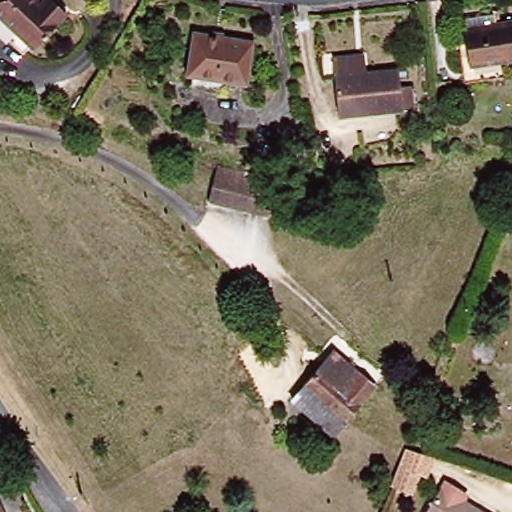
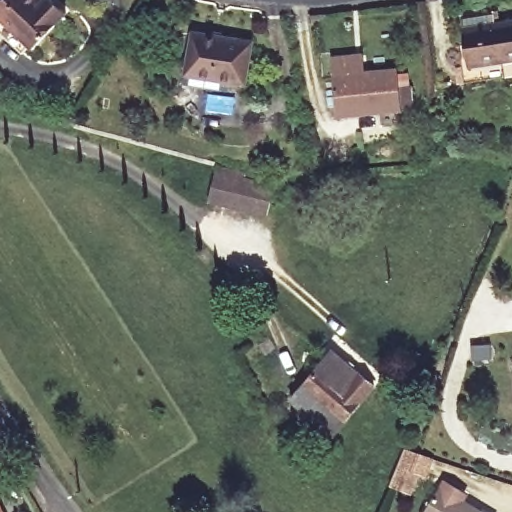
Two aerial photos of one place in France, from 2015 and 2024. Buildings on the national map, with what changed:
unchanged [(72,10),(38,45),(31,52),(0,21),(0,0),(62,0),(72,10)]
unchanged [(470,29),(467,13),(498,10),(500,19),(512,17),(512,55),(505,56),(508,72),(469,77),(467,62),(473,61),(470,29)]
unchanged [(191,85),(193,76),(187,75),(195,32),(252,41),(245,84),(223,81),(222,90),(191,85)]
unchanged [(415,106),(406,107),(406,109),(345,115),(338,57),(368,54),(370,72),(402,69),(404,90),(413,89),(415,106)]
unchanged [(272,186),(265,214),(209,200),(215,172),(272,186)]
unchanged [(335,435),(291,399),(332,350),(375,386),(335,435)]
unchanged [(424,475),(416,472),(408,492),(389,484),(404,447),(430,457),(424,475)]
unchanged [(485,512),(431,512),(446,488),(485,512)]
unchanged [(0,512),(0,492),(9,512),(0,512)]

